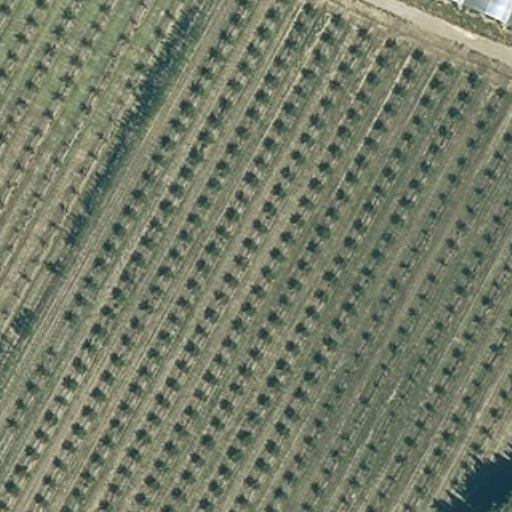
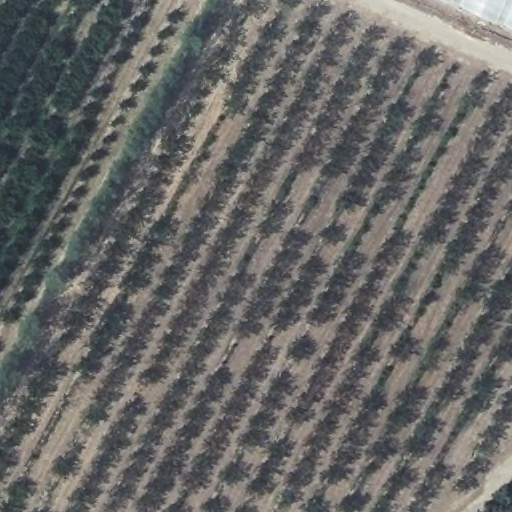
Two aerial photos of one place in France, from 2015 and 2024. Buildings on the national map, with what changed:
unchanged [(468,0),(512,0),(512,19),(468,0)]

